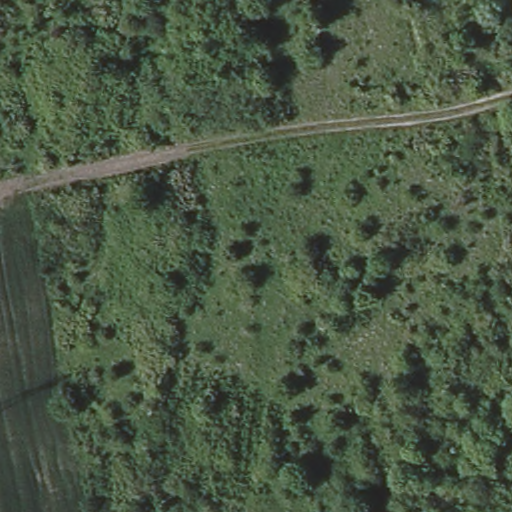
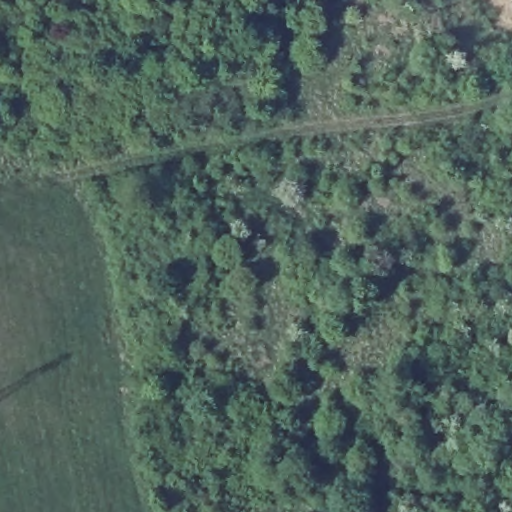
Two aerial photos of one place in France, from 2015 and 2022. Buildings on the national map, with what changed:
unchanged [(509,0),(512,0),(512,2),(509,2),(509,0)]
unchanged [(512,2),(512,12),(510,12),(509,2),(512,2)]

